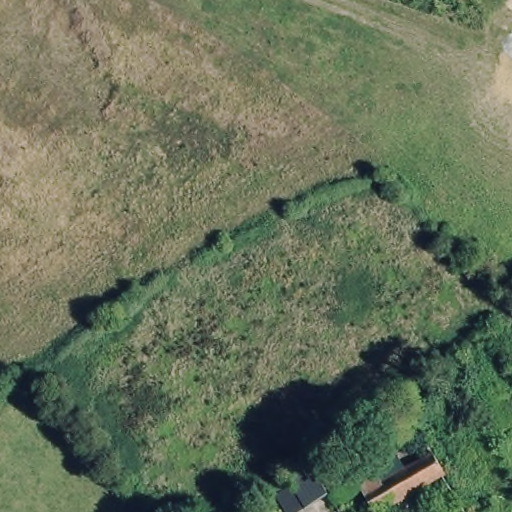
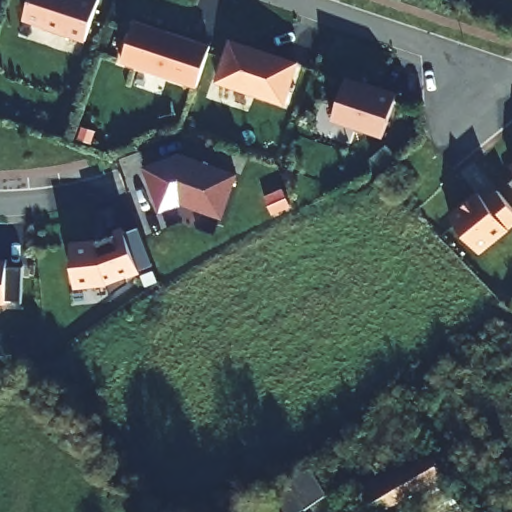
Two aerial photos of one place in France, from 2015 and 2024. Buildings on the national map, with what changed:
new [(86,42),(24,21),(31,0),(100,0),(86,42)]
new [(211,45),(196,88),(122,63),(135,20),(211,45)]
new [(300,63),(286,106),(216,84),(230,40),(300,63)]
new [(398,93),(384,138),(333,124),(347,77),(398,93)]
new [(381,173),(371,161),(386,149),(396,160),(381,173)]
new [(181,205),(161,212),(145,167),(181,153),(238,175),(223,218),(181,205)]
new [(512,163),(512,168),(509,165),(512,163)]
new [(512,227),(481,253),(448,216),(478,191),(484,197),(496,188),(512,207),(512,227)]
new [(289,210),(273,217),(264,200),(282,192),(289,210)]
new [(128,283),(111,295),(108,285),(102,287),(76,289),(71,241),(98,237),(123,227),(138,223),(153,269),(140,274),(128,280),(128,283)]
new [(21,303),(0,303),(0,259),(9,259),(8,267),(23,267),(21,303)]
unchanged [(381,512),(376,512),(357,481),(399,456),(406,468),(433,453),(446,475),(381,512)]
unchanged [(329,494),(307,508),(306,506),(296,512),(288,512),(278,495),(294,486),(289,477),(312,466),(329,494)]

